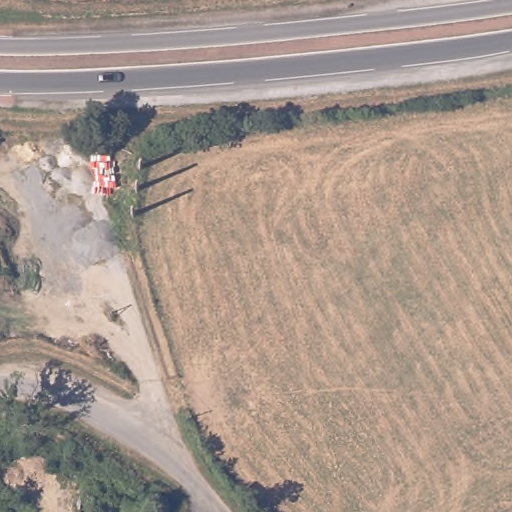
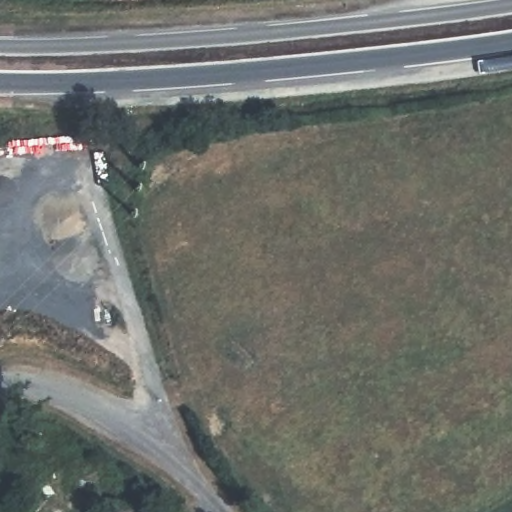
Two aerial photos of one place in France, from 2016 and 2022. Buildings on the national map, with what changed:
unchanged [(137,512),(111,512),(112,506),(137,512)]

